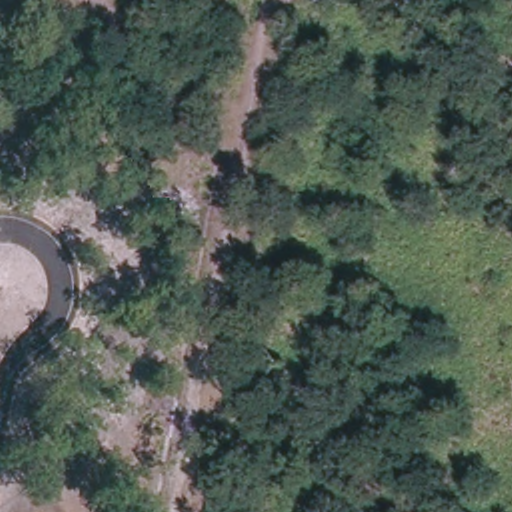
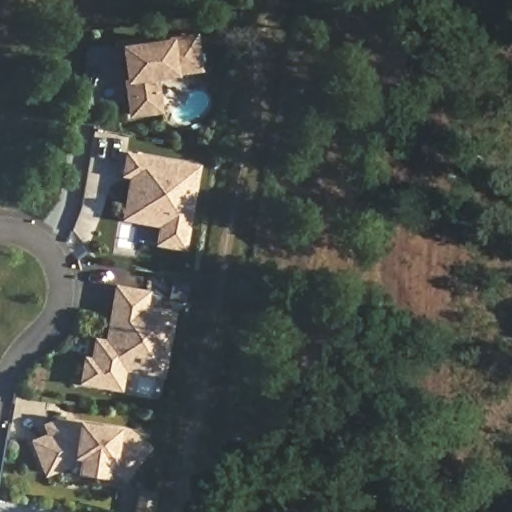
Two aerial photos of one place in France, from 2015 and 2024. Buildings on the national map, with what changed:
new [(126,117),(121,80),(116,44),(115,40),(195,30),(200,71),(174,74),(158,76),(161,113),(126,117)]
new [(184,250),(153,245),(156,226),(120,220),(127,178),(119,177),(123,150),(199,164),(184,250)]
new [(120,389),(77,383),(81,355),(89,357),(92,336),(103,338),(112,284),(149,289),(146,305),(175,309),(163,377),(123,372),(120,389)]
new [(44,434),(40,424),(56,417),(74,420),(116,425),(129,429),(150,447),(122,482),(109,471),(104,470),(103,476),(72,472),(74,464),(43,477),(29,439),(44,434)]

